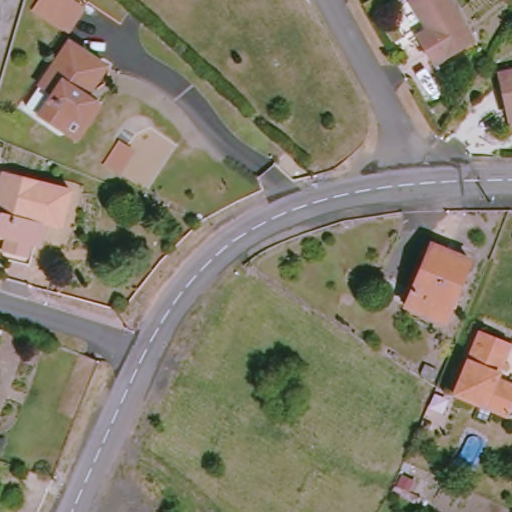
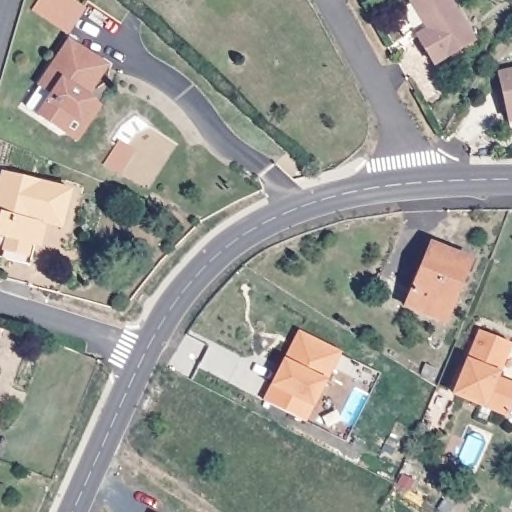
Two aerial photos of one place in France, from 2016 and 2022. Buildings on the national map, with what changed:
unchanged [(38,0),(77,0),(85,5),(67,32),(32,9),(38,0)]
unchanged [(431,63),(414,34),(423,28),(408,0),(447,0),(470,40),(431,63)]
unchanged [(83,131),(68,122),(45,107),(55,92),(40,84),(70,40),(107,64),(97,79),(89,81),(88,86),(100,92),(108,97),(83,131)]
unchanged [(512,70),(512,114),(505,115),(497,74),(512,70)]
unchanged [(126,134),(140,143),(125,166),(110,156),(126,134)]
unchanged [(0,199),(8,174),(44,185),(35,219),(46,222),(33,266),(0,257),(0,236),(6,215),(0,214),(0,199)]
unchanged [(468,259),(442,320),(403,304),(430,242),(468,259)]
new [(263,400),(299,330),(342,352),(307,423),(263,400)]
unchanged [(499,417),(447,395),(472,332),(503,345),(512,349),(512,372),(505,387),(512,390),(499,417)]

